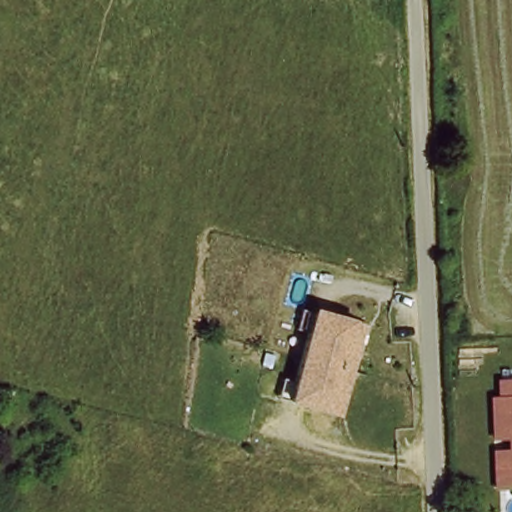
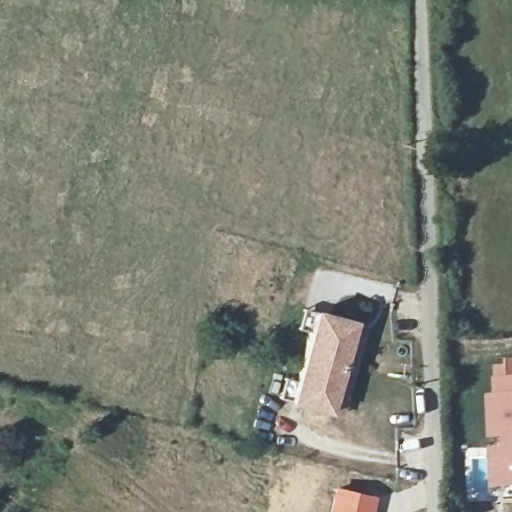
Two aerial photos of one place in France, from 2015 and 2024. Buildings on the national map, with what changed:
unchanged [(327,413),(289,403),(277,401),(282,382),(294,385),(308,333),(296,330),(301,311),(313,315),(350,325),(362,327),(358,344),(342,400),(338,417),(327,413)]
unchanged [(495,491),(495,450),(507,450),(506,439),(494,440),(492,395),(499,395),(498,381),(512,380),(512,490),(495,491)]
new [(333,486),(376,495),(372,512),(327,512),(333,486)]

